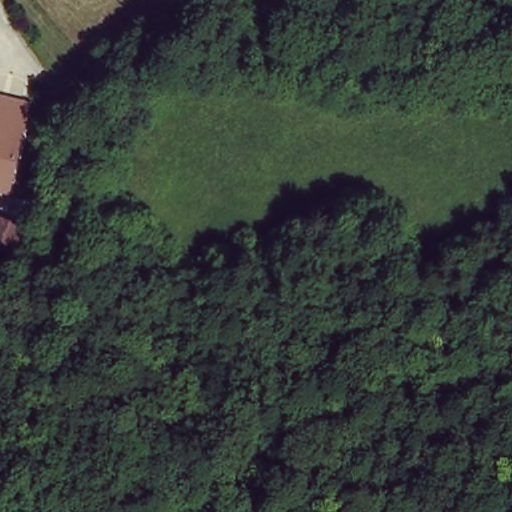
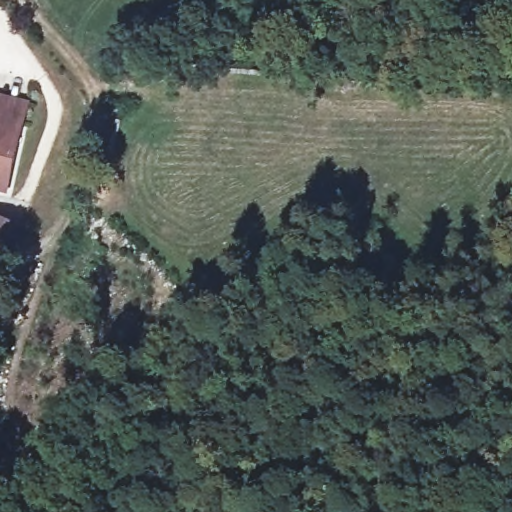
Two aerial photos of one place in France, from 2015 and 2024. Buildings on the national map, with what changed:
unchanged [(0,188),(0,98),(25,103),(10,170),(7,189),(0,188)]
unchanged [(26,227),(10,257),(0,253),(0,217),(26,227)]

